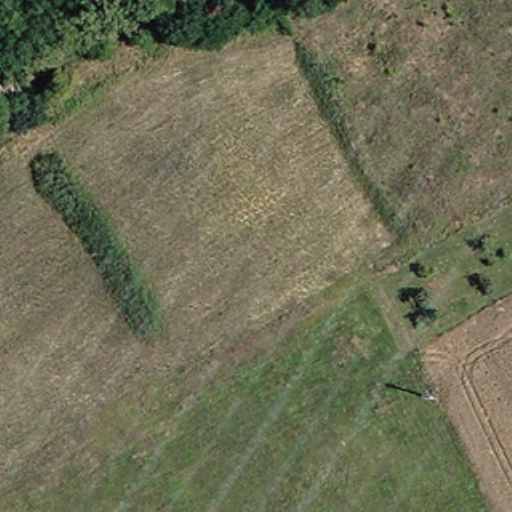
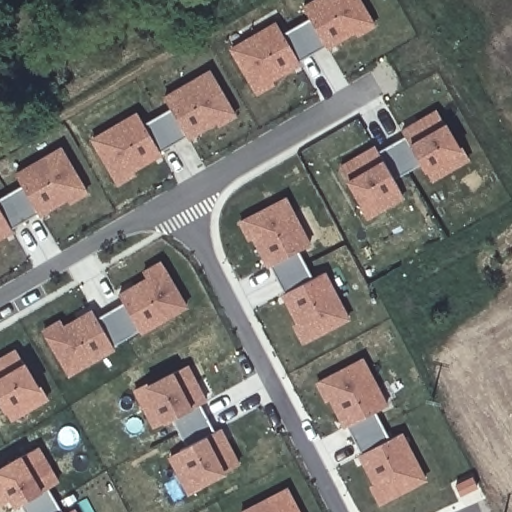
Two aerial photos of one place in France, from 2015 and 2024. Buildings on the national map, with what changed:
new [(274,83),(257,93),(232,49),(277,23),(283,33),(310,18),(303,6),(315,0),(360,0),(374,25),(357,35),(355,31),(327,47),(327,46),(298,62),(299,64),(272,80),(274,83)]
new [(133,170),(135,174),(118,184),(92,139),(137,114),(144,124),(171,109),(164,98),(210,71),(235,116),(218,125),(216,122),(189,138),(183,128),(187,136),(159,153),(160,154),(133,170)]
new [(340,166),(375,145),(377,150),(405,135),(402,130),(437,110),(458,148),(423,169),(420,162),(393,178),(397,185),(403,196),(367,217),(361,206),(362,205),(340,166)]
new [(430,180),(423,169),(461,148),(467,159),(430,180)]
new [(0,199),(22,186),(15,175),(61,149),(86,193),(69,203),(67,199),(40,215),(39,213),(11,230),(12,231),(0,238),(0,199)]
new [(271,263),(268,264),(254,236),(250,238),(241,221),(286,197),(310,243),(299,249),(314,276),(325,270),(349,317),(304,340),(295,323),(298,321),(284,294),(286,293),(271,263)]
new [(86,365),(69,375),(43,331),(61,321),(64,328),(92,311),(97,319),(123,303),(119,295),(147,279),(143,273),(160,263),(186,307),(169,317),(142,332),(141,330),(112,347),(114,349),(86,365)]
new [(39,388),(40,387),(46,397),(10,419),(4,408),(0,403),(0,358),(16,349),(39,388)]
new [(347,425),(345,426),(331,398),(327,400),(318,383),(363,359),(387,404),(376,411),(390,438),(402,433),(425,478),(381,502),(372,485),(376,482),(360,454),(362,453),(347,425)]
new [(187,446),(172,419),(166,422),(155,428),(135,391),(146,385),(147,387),(187,366),(206,402),(201,404),(215,431),(220,429),(238,465),(199,486),(200,487),(189,493),(169,456),(180,450),(187,446)]
new [(21,505),(16,507),(0,479),(0,470),(31,452),(42,470),(47,467),(57,484),(48,489),(61,512),(25,512),(21,505)]
new [(241,512),(285,489),(298,512),(241,512)]
new [(73,510),(74,512),(70,512),(73,510)]

